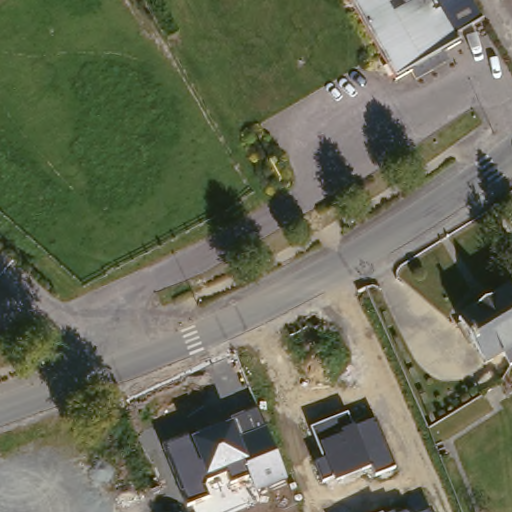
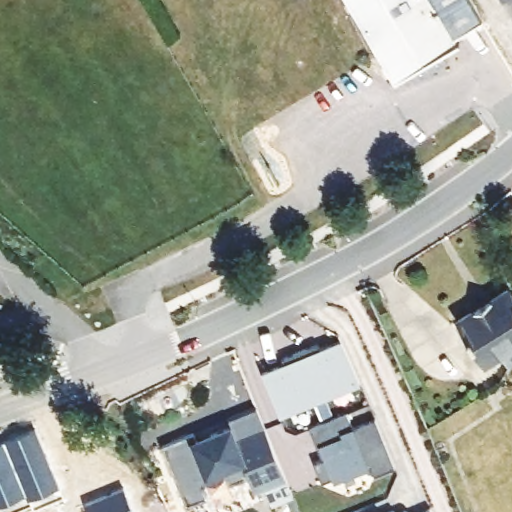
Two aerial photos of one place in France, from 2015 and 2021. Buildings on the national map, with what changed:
unchanged [(453,36),(457,43),(440,52),(445,61),(411,80),(406,71),(392,79),(348,0),(470,0),(481,20),(453,36)]
unchanged [(498,0),(504,0),(499,2),(498,0)]
unchanged [(505,290),(512,301),(512,360),(504,365),(498,353),(480,364),(453,321),(505,290)]
new [(361,386),(329,400),(334,415),(320,421),(314,405),(280,419),(262,372),(283,363),(282,359),(320,343),(321,347),(340,340),(361,386)]
unchanged [(163,445),(261,408),(288,479),(255,492),(248,477),(231,483),(226,473),(208,481),(205,486),(210,498),(187,507),(163,445)]
unchanged [(333,477),(322,481),(313,462),(322,457),(311,427),(348,412),(355,427),(378,419),(397,468),(375,476),(370,466),(335,481),(333,477)]
new [(34,431),(58,490),(27,503),(25,497),(0,508),(0,446),(34,431)]
new [(122,490),(132,512),(87,512),(84,505),(122,490)]
unchanged [(432,510),(433,512),(426,512),(432,510)]

